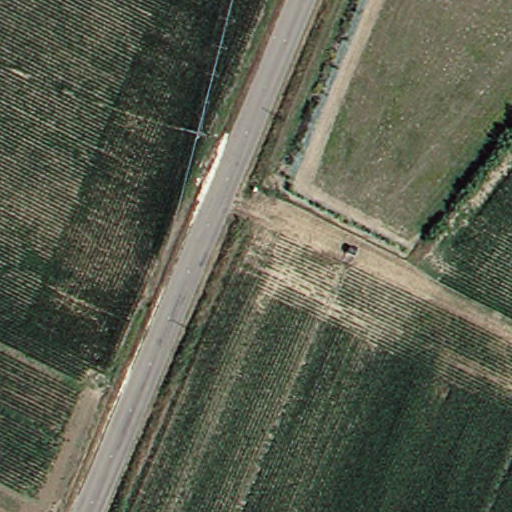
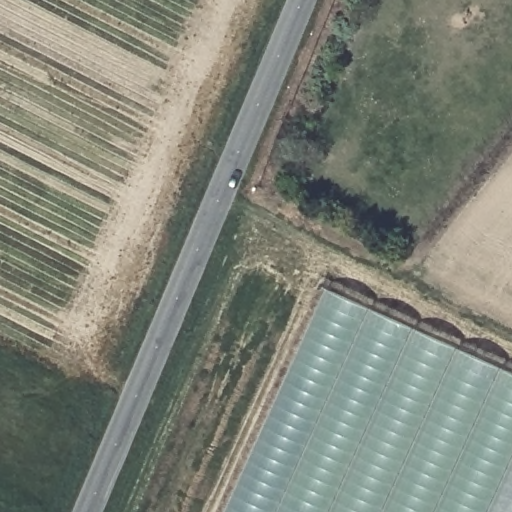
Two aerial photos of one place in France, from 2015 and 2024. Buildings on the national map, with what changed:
new [(512,370),(512,512),(227,512),(329,287),(512,370)]

